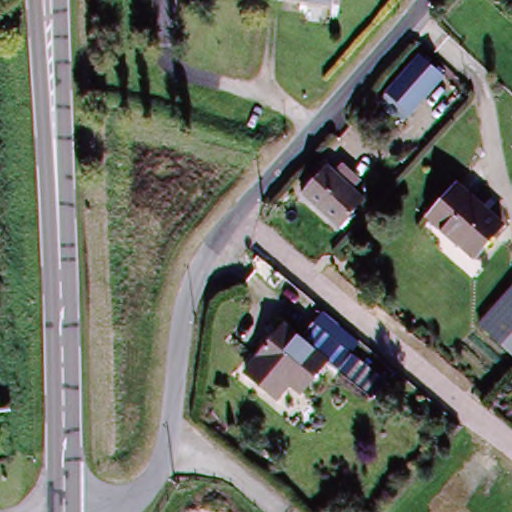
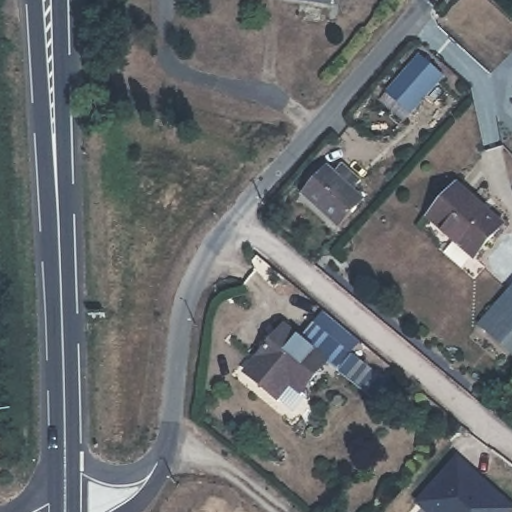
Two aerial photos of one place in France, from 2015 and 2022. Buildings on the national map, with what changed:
unchanged [(335,0),(333,6),(299,0),(335,0)]
unchanged [(380,97),(388,89),(387,87),(419,51),(446,75),(441,81),(447,87),(431,104),(425,99),(413,111),(412,109),(403,119),(380,97)]
unchanged [(335,230),(297,195),(323,167),(332,174),(338,167),(354,180),(347,188),(361,200),(335,230)]
unchanged [(474,259),(430,219),(458,187),(503,227),(474,259)]
unchanged [(512,279),(512,349),(509,352),(475,321),(512,279)]
unchanged [(333,367),(323,359),(297,389),(253,351),(279,323),(295,335),(310,319),(347,351),(355,358),(343,372),(335,365),(333,367)]
new [(471,477),(466,483),(477,493),(482,487),(511,512),(422,512),(417,508),(455,464),(471,477)]

